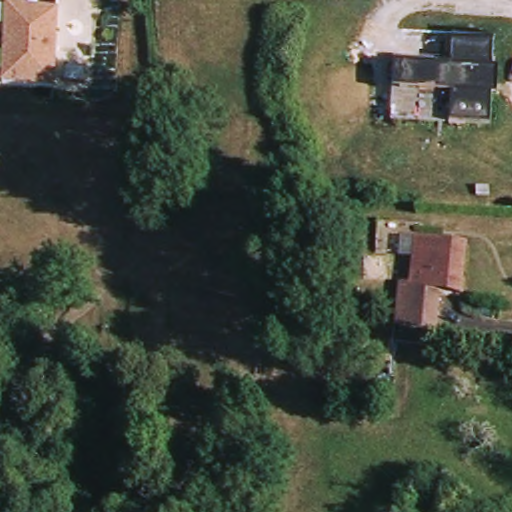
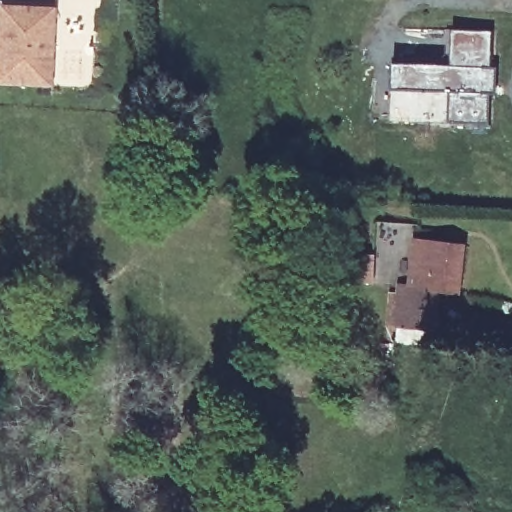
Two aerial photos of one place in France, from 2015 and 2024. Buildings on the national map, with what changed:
unchanged [(0,5),(10,5),(8,83),(0,83),(0,5)]
unchanged [(63,6),(59,85),(8,83),(10,5),(63,6)]
unchanged [(486,126),(451,124),(391,124),(392,85),(394,65),(452,68),(456,34),(490,35),(486,126)]
unchanged [(410,287),(415,239),(466,244),(461,292),(438,290),(437,297),(402,295),(403,287),(410,287)]
unchanged [(398,340),(399,328),(402,295),(437,297),(434,330),(433,341),(398,340)]

